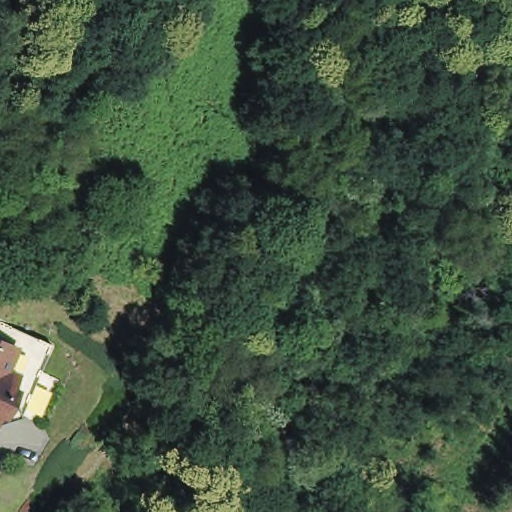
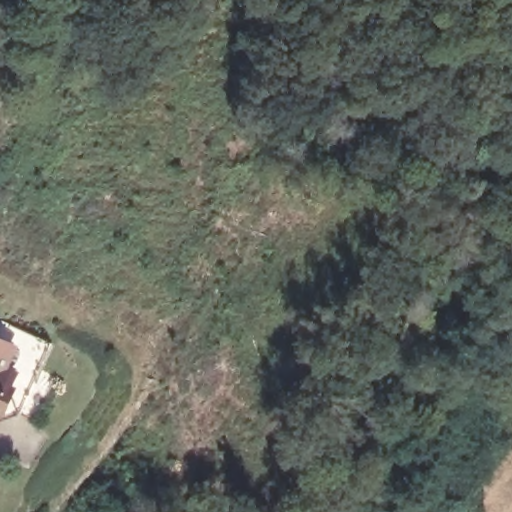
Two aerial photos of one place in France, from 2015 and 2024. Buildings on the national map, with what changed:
unchanged [(44,345),(13,415),(8,397),(1,395),(10,376),(0,372),(0,365),(6,350),(0,347),(0,326),(44,345)]
unchanged [(6,350),(0,365),(0,347),(6,350)]
unchanged [(0,420),(0,372),(10,376),(1,395),(8,397),(13,415),(0,420)]

